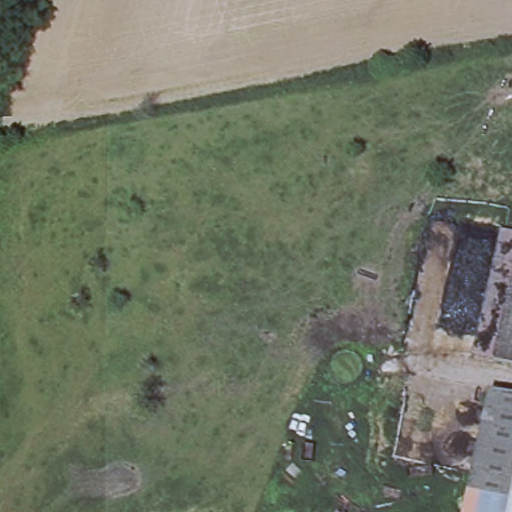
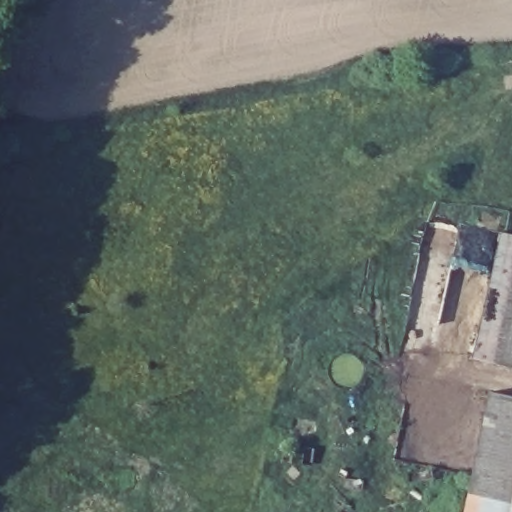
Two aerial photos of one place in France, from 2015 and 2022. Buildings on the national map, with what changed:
unchanged [(512,298),(496,362),(475,357),(501,234),(512,237),(512,298)]
unchanged [(512,298),(512,366),(496,362),(512,298)]
unchanged [(487,391),(510,397),(512,380),(512,512),(461,512),(487,391)]

